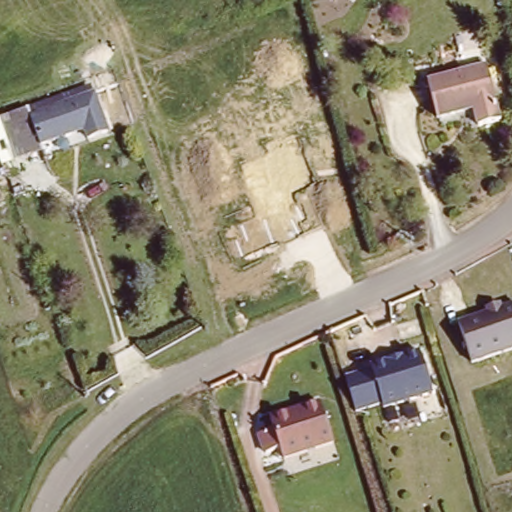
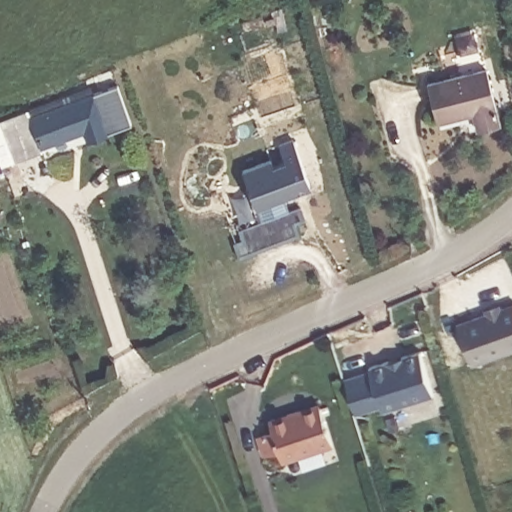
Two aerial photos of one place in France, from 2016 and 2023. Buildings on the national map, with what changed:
unchanged [(490,67),(502,123),(479,129),(475,110),(435,119),(427,79),(490,67)]
unchanged [(0,142),(0,118),(90,89),(105,131),(87,139),(82,131),(37,146),(37,152),(5,159),(0,142)]
new [(242,241),(237,229),(259,222),(242,171),(270,162),(267,151),(294,142),(309,189),(282,198),(287,213),(297,210),(301,223),(292,226),(295,237),(236,257),(232,244),(242,241)]
unchanged [(461,321),(491,311),(490,307),(502,303),(505,307),(512,305),(512,349),(474,360),(461,321)]
unchanged [(370,372),(368,366),(387,360),(389,364),(403,360),(402,356),(420,351),(433,394),(381,411),(379,406),(356,412),(345,379),(370,372)]
unchanged [(287,413),(289,418),(318,409),(328,445),(276,460),(274,451),(257,454),(252,437),(267,432),(265,420),(287,413)]

